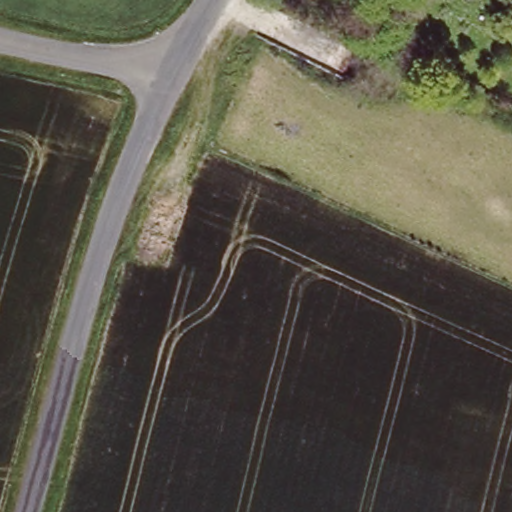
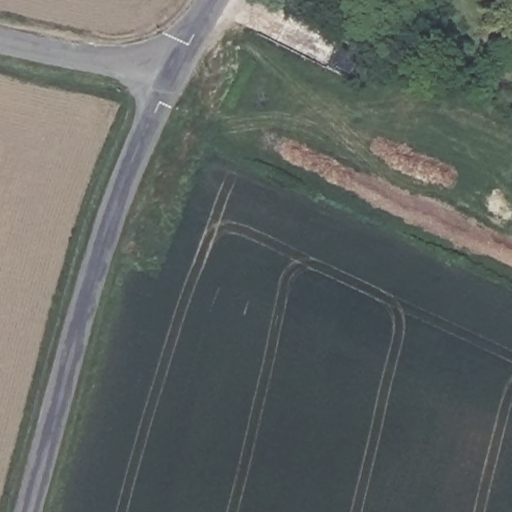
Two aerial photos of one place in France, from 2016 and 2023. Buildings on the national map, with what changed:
[]

